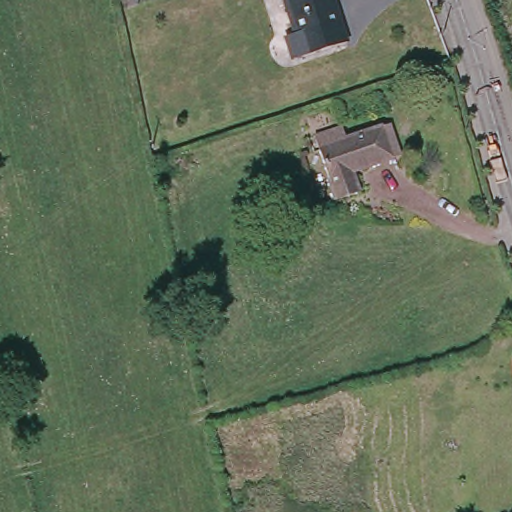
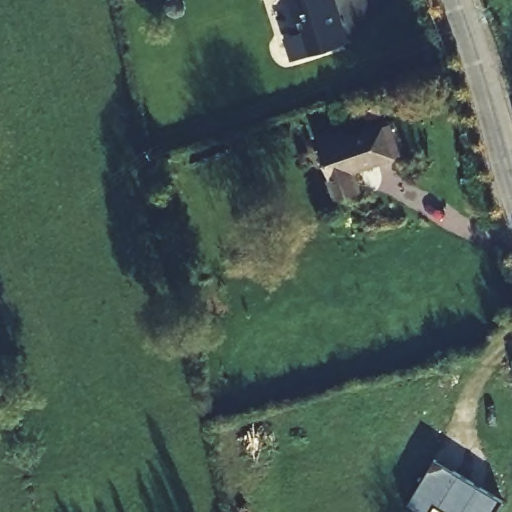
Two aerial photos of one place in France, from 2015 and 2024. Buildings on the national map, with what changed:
unchanged [(294,50),(286,28),(295,24),(288,0),(337,0),(347,33),(294,50)]
unchanged [(359,193),(336,200),(315,136),(343,127),(347,138),(384,125),(390,123),(402,155),(394,157),(352,172),(359,193)]
new [(430,512),(420,512),(409,505),(435,459),(504,500),(496,512),(451,512),(435,503),(430,512)]

